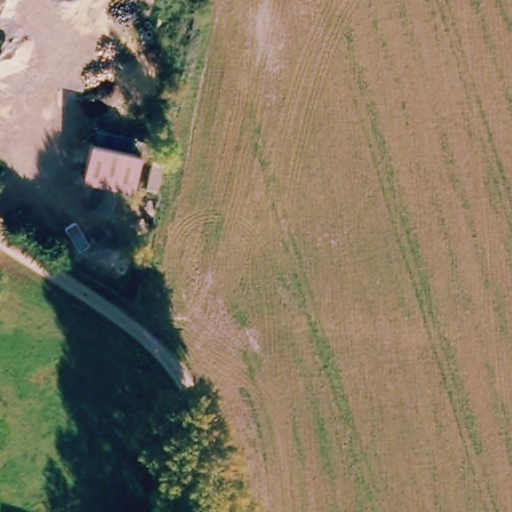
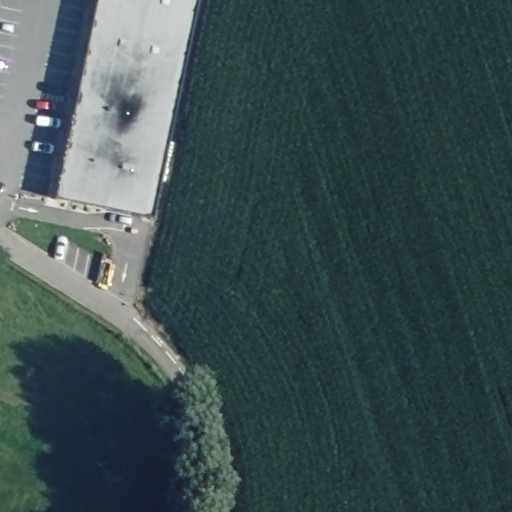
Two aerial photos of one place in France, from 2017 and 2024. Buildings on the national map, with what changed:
new [(55,198),(93,0),(194,0),(152,218),(55,198)]
demolished [(88,140),(92,127),(152,139),(150,157),(161,158),(156,188),(132,182),(128,192),(79,179),(88,140)]

